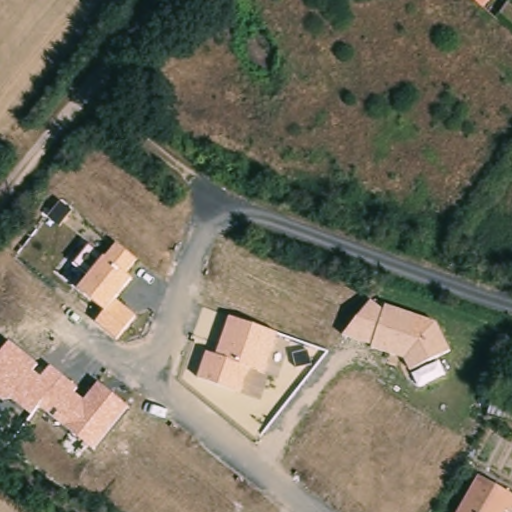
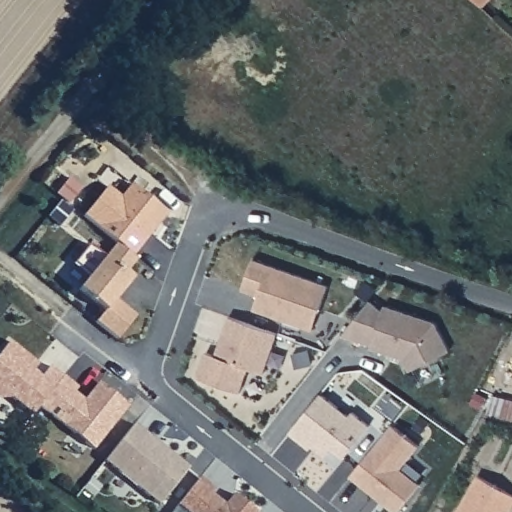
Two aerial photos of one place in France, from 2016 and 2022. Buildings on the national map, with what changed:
unchanged [(484,0),(499,0),(492,7),(484,0)]
new [(107,186),(121,196),(131,184),(167,212),(134,256),(118,243),(84,215),(107,186)]
unchanged [(117,339),(97,321),(105,311),(77,288),(87,277),(73,265),(91,246),(105,257),(118,243),(137,259),(125,273),(132,279),(114,301),(134,316),(117,339)]
new [(255,263),(330,289),(315,333),(256,312),(261,298),(245,292),(255,263)]
unchanged [(408,369),(405,359),(371,347),(372,343),(343,336),(371,300),(383,311),(385,305),(437,322),(450,350),(408,369)]
unchanged [(266,373),(248,366),(241,392),(197,378),(206,351),(217,355),(229,317),(277,332),(266,373)]
unchanged [(94,449),(39,406),(31,413),(9,396),(0,398),(0,353),(10,342),(37,364),(31,370),(41,378),(51,366),(77,388),(73,393),(84,400),(98,382),(127,406),(94,449)]
new [(290,432),(322,393),(350,414),(352,410),(370,425),(345,457),(332,448),(327,456),(312,446),(309,449),(290,432)]
unchanged [(512,421),(488,415),(493,397),(512,403),(512,421)]
new [(136,426),(149,437),(147,439),(163,452),(166,450),(190,470),(161,507),(107,463),(136,426)]
new [(393,426),(420,447),(401,470),(421,486),(400,512),(395,512),(352,477),(393,426)]
unchanged [(512,505),(507,512),(504,512),(503,511),(503,512),(456,512),(477,476),(512,498),(512,505)]
new [(179,507),(201,480),(215,491),(212,495),(226,507),(235,496),(254,512),(185,512),(179,507)]

